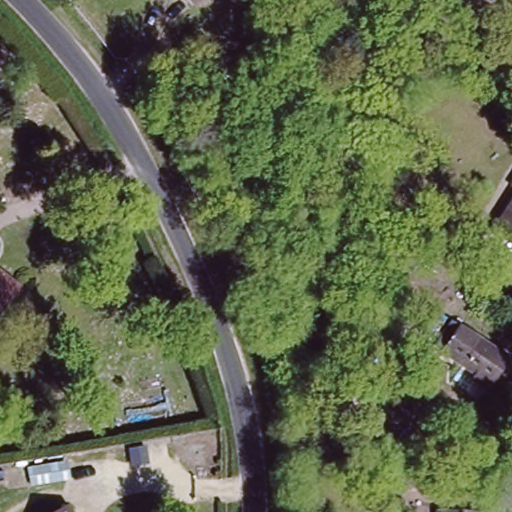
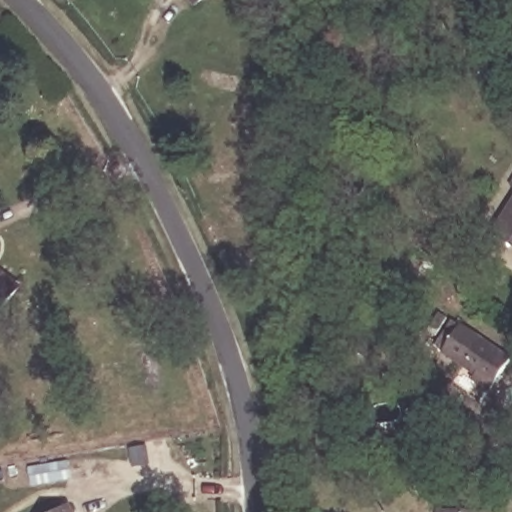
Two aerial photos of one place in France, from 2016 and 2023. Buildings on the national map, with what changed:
unchanged [(199,4),(195,0),(204,0),(199,4)]
unchanged [(510,186),(512,183),(512,187),(510,186)]
unchanged [(492,235),(512,206),(512,249),(492,235)]
unchanged [(0,308),(0,273),(17,286),(0,308)]
unchanged [(480,340),(510,361),(492,387),(476,375),(460,365),(435,346),(451,321),(480,340)]
unchanged [(162,461),(157,444),(172,441),(176,458),(162,461)]
unchanged [(442,447),(440,463),(431,462),(432,446),(442,447)]
unchanged [(29,468),(31,477),(15,482),(14,471),(29,468)]
unchanged [(72,512),(57,512),(69,506),(72,512)]
unchanged [(495,511),(495,512),(434,512),(435,506),(495,511)]

